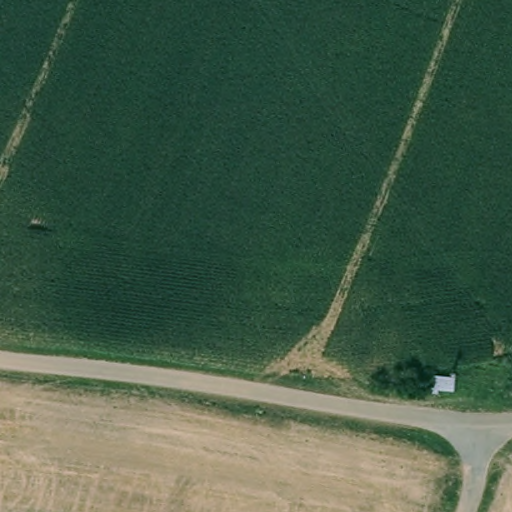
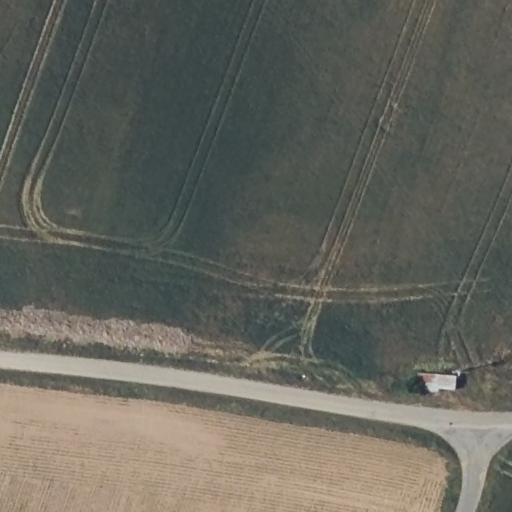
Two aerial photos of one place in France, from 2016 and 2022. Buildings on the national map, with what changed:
unchanged [(416,394),(417,376),(454,374),(456,394),(416,394)]

